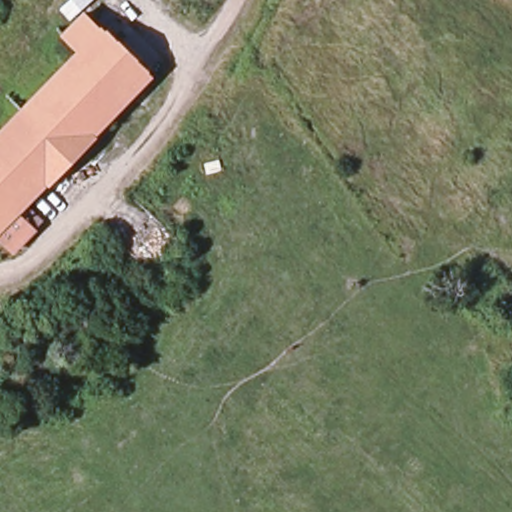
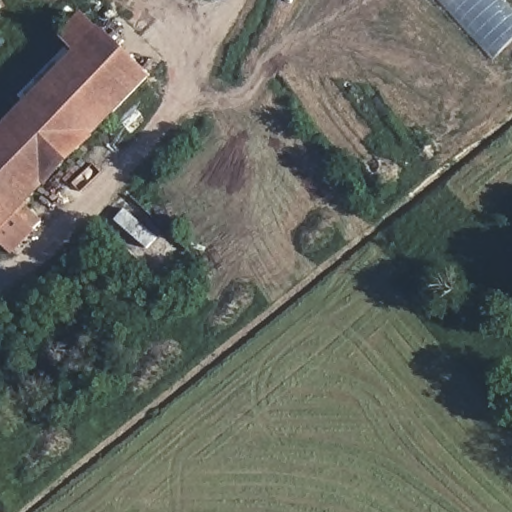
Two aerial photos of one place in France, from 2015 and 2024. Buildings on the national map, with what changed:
new [(512,7),(512,43),(492,60),(437,0),(506,0),(512,7)]
unchanged [(156,70),(37,203),(54,221),(21,251),(9,234),(0,240),(0,120),(99,15),(156,70)]

